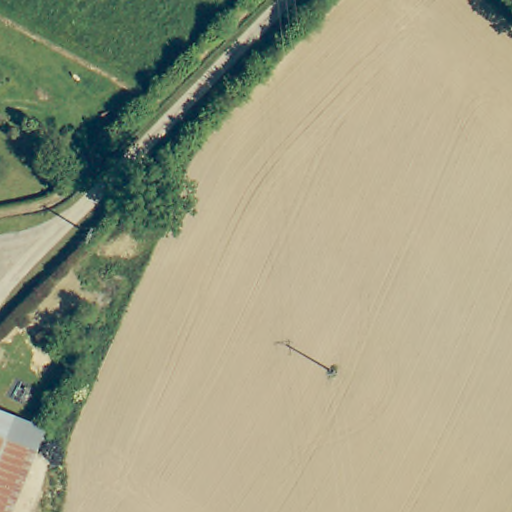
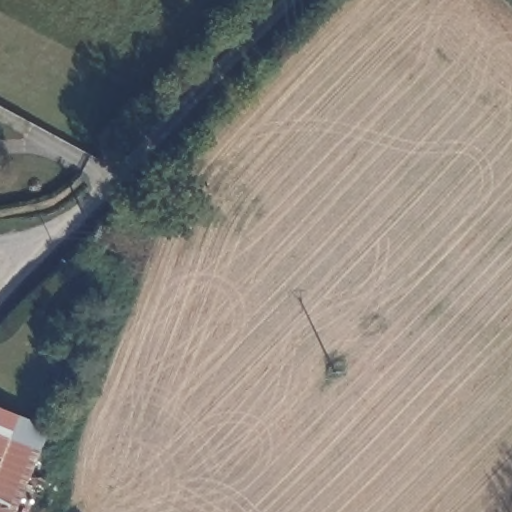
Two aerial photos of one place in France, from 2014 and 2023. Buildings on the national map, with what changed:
unchanged [(19,415),(10,437),(0,434),(0,406),(19,415)]
unchanged [(19,415),(20,415),(49,426),(17,512),(0,512),(0,434),(10,437),(19,415)]

